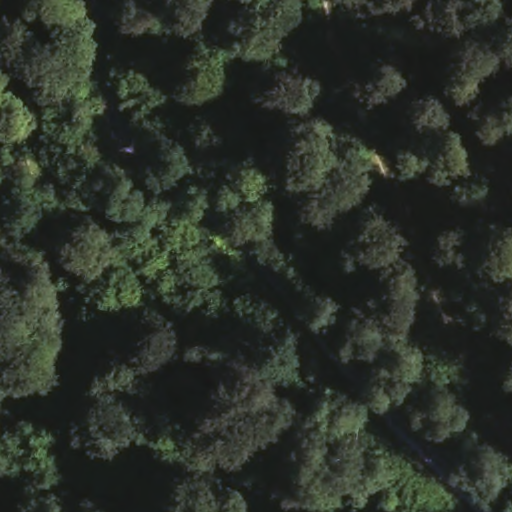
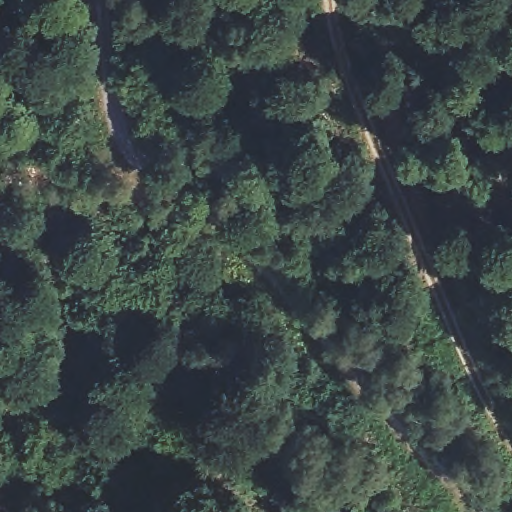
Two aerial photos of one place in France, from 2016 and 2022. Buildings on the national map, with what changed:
[]

